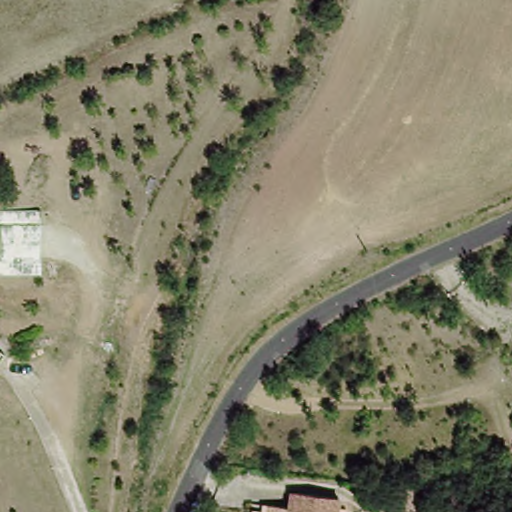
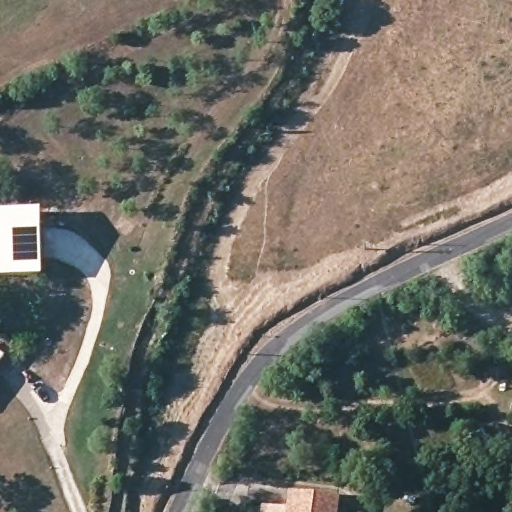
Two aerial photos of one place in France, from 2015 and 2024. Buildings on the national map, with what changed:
new [(40,211),(42,275),(0,276),(0,211),(40,211)]
unchanged [(326,512),(285,512),(290,493),(328,504),(326,512)]

